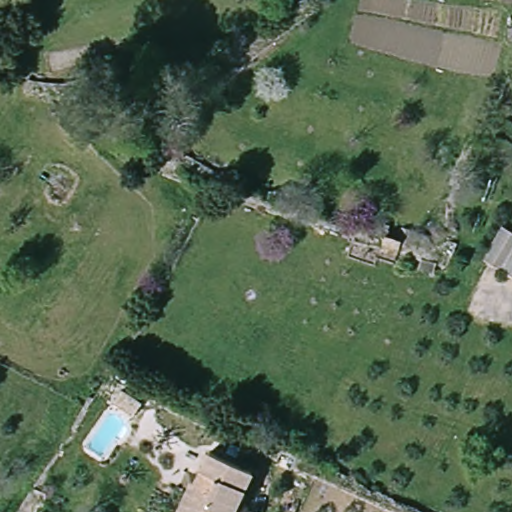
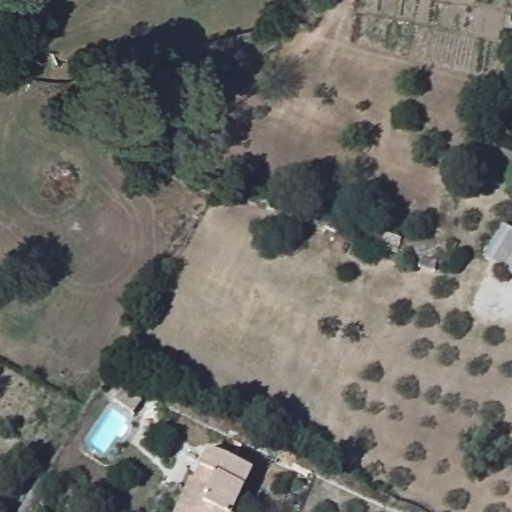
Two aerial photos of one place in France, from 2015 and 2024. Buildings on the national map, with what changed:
unchanged [(489,266),(506,231),(512,235),(512,277),(489,266)]
unchanged [(381,251),(386,238),(404,243),(399,256),(381,251)]
unchanged [(199,493),(191,489),(206,458),(251,480),(235,512),(190,512),(199,493)]

